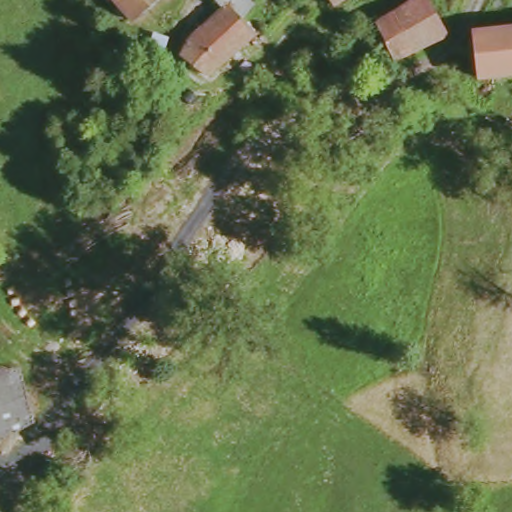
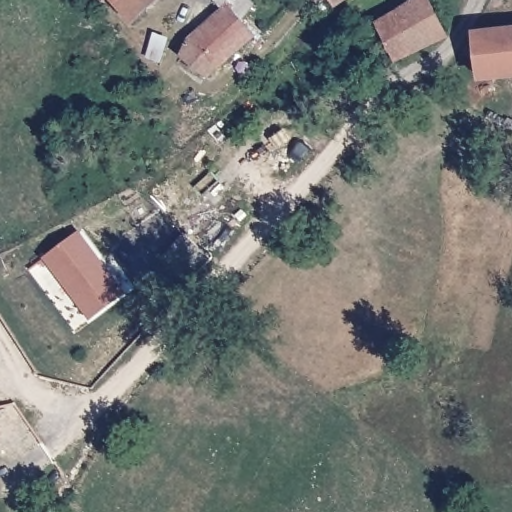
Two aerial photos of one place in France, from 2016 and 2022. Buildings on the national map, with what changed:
unchanged [(107,0),(161,0),(130,27),(107,0)]
unchanged [(183,40),(225,6),(219,0),(248,0),(251,3),(241,16),(256,33),(251,39),(220,68),(210,78),(180,55),(183,40)]
unchanged [(329,0),(344,0),(336,8),(329,0)]
unchanged [(409,1),(408,0),(429,0),(445,36),(395,60),(376,20),(409,1)]
unchanged [(481,81),(477,31),(512,27),(512,77),(481,81)]
unchanged [(148,55),(152,32),(166,35),(161,58),(148,55)]
new [(31,271),(80,234),(123,294),(76,330),(31,271)]

